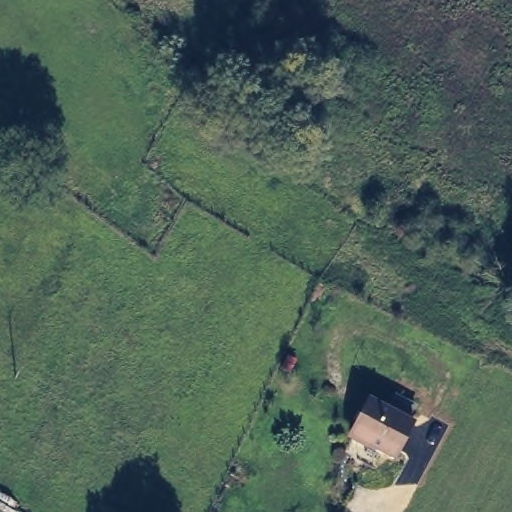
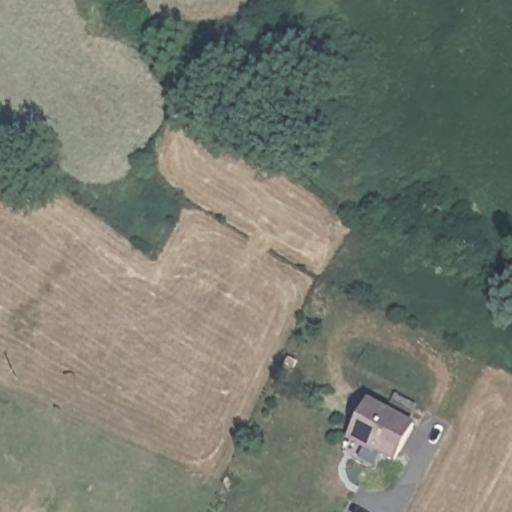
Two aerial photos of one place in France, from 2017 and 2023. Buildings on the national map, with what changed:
unchanged [(370,396),(414,419),(395,454),(351,431),(370,396)]

